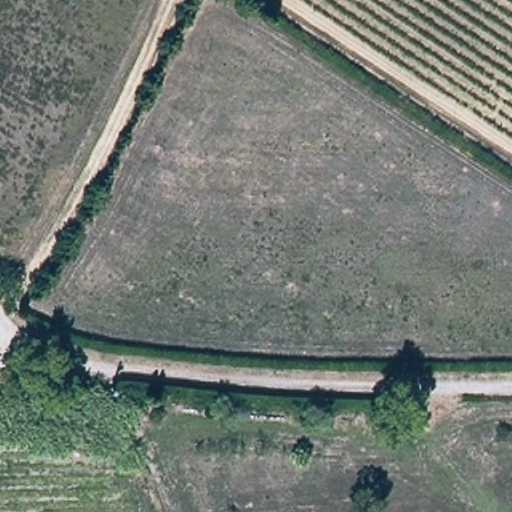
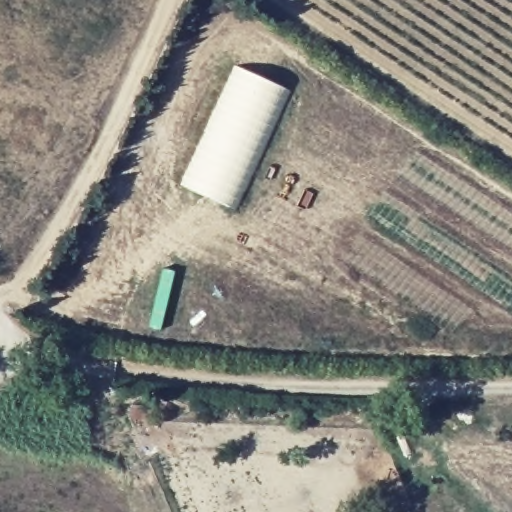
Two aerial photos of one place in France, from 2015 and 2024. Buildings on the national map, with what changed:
new [(234,64),(291,90),(262,154),(234,209),(179,185),(234,64)]
unchanged [(125,406),(146,406),(146,423),(125,422),(125,406)]

